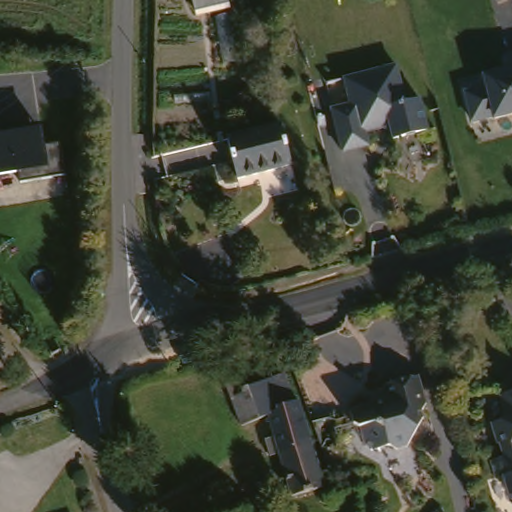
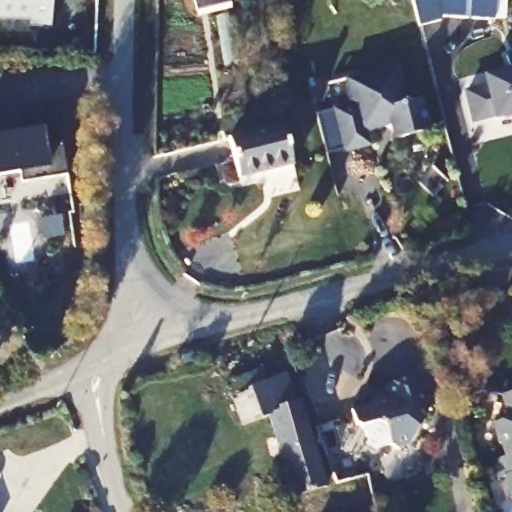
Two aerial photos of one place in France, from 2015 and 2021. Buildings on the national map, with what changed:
new [(49,22),(29,20),(30,12),(0,9),(0,0),(51,0),(49,22)]
unchanged [(197,0),(226,0),(228,7),(201,13),(197,0)]
new [(490,21),(436,20),(437,24),(415,30),(407,0),(492,0),(490,21)]
unchanged [(495,120),(494,117),(473,124),(465,95),(487,89),(484,79),(509,72),(505,58),(512,56),(512,115),(495,120)]
unchanged [(394,67),(403,104),(418,100),(426,132),(396,140),(394,131),(388,127),(364,134),(367,147),(341,154),(330,111),(349,106),(342,80),(394,67)]
unchanged [(43,129),(44,147),(58,144),(63,175),(22,182),(21,171),(0,175),(0,124),(2,134),(43,129)]
unchanged [(229,138),(283,125),(293,166),(238,179),(229,138)]
unchanged [(289,453),(280,455),(276,439),(283,436),(279,415),(250,425),(235,380),(252,375),(273,368),(277,381),(297,375),(306,403),(310,401),(332,486),(301,495),(289,453)]
unchanged [(400,449),(393,445),(386,447),(372,440),(364,442),(360,428),(355,426),(351,410),(366,406),(371,399),(378,402),(389,399),(386,384),(419,375),(429,399),(423,400),(428,417),(412,445),(400,449)]
unchanged [(509,387),(512,386),(512,403),(509,387)]
unchanged [(508,431),(503,432),(500,420),(512,403),(512,443),(508,431)]
unchanged [(512,488),(506,471),(500,473),(496,456),(512,450),(512,489),(512,488)]

